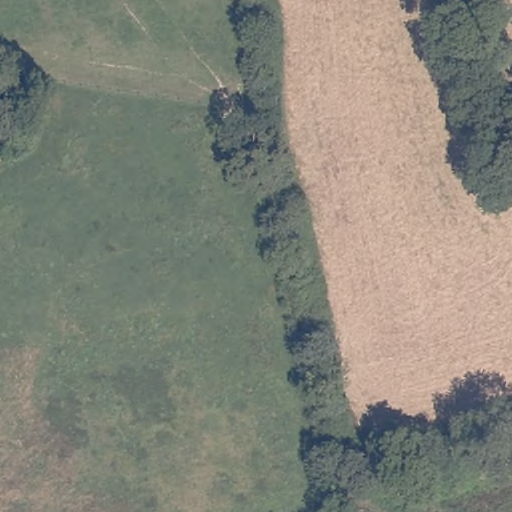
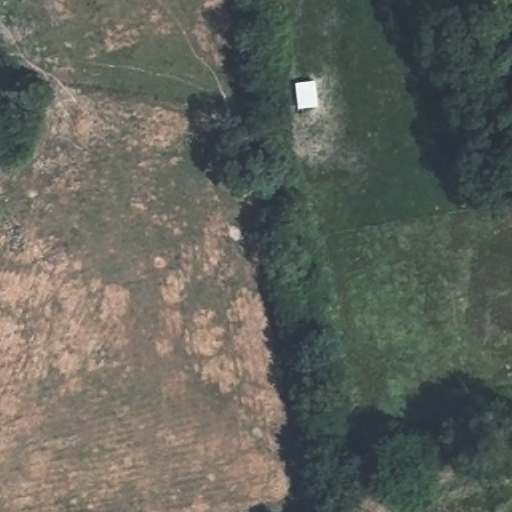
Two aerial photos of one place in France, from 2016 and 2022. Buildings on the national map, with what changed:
[]

